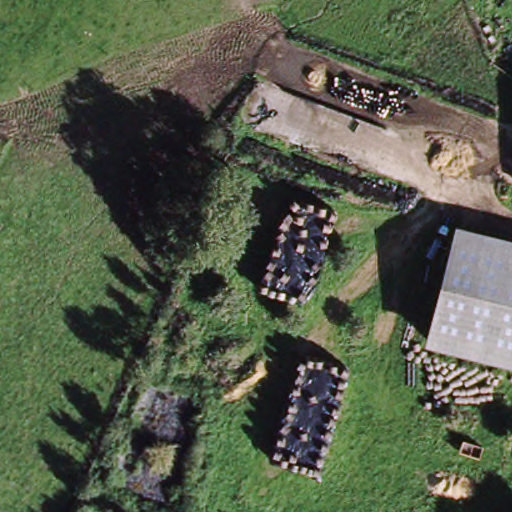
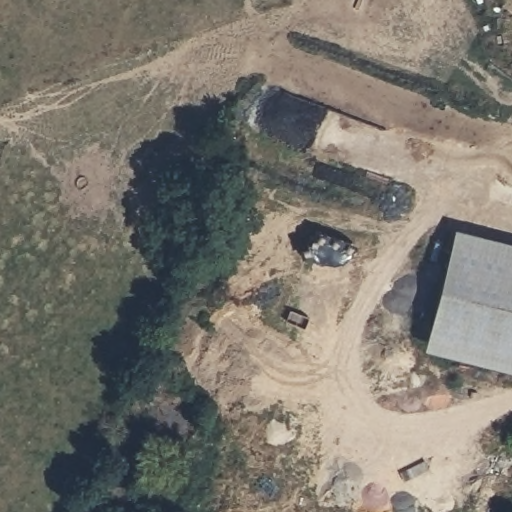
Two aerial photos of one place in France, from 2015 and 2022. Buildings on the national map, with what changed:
unchanged [(462,221),(512,238),(512,365),(425,335),(462,221)]

